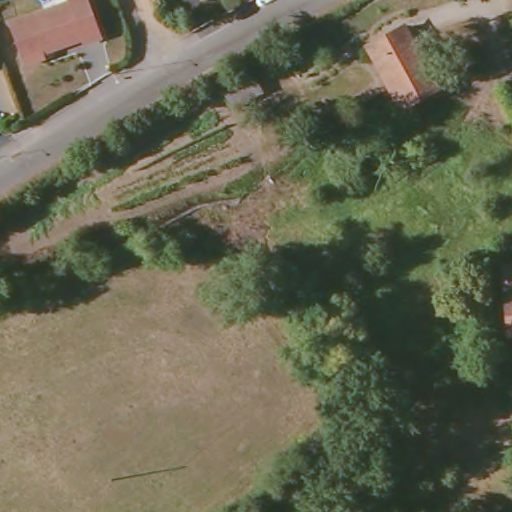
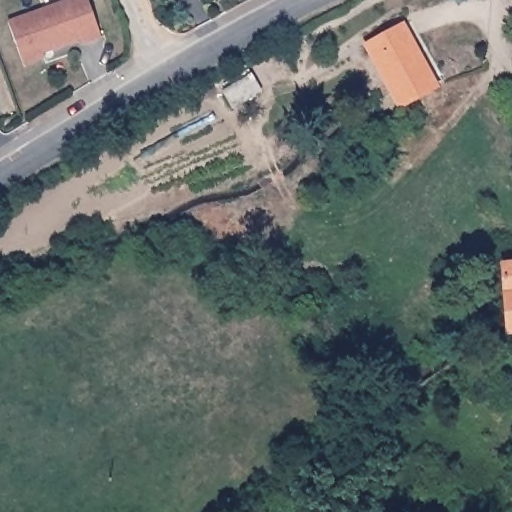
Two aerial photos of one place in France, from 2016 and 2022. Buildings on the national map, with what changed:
unchanged [(81,37),(45,50),(46,55),(25,63),(10,19),(63,0),(91,0),(103,34),(83,41),(81,37)]
unchanged [(396,100),(363,41),(378,34),(398,23),(430,83),(396,100)]
unchanged [(501,265),(512,264),(512,334),(506,334),(501,265)]

